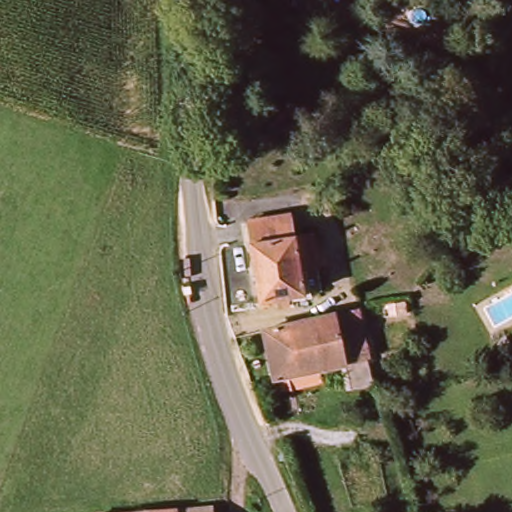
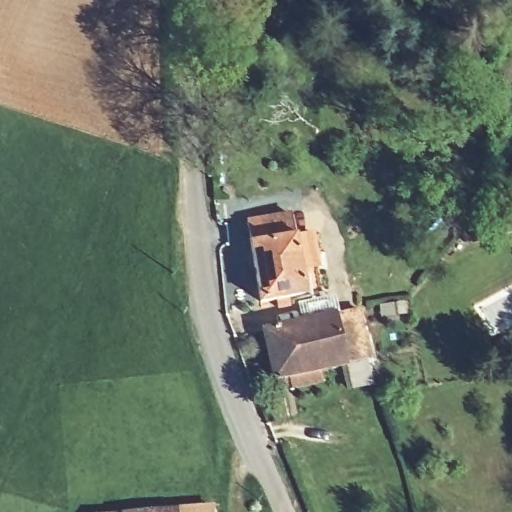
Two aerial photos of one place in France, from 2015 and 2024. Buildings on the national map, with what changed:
unchanged [(303,209),(315,264),(319,285),(303,289),(261,297),(244,220),(287,212),(303,209)]
unchanged [(255,325),(368,303),(379,358),(324,369),(267,381),(255,325)]
unchanged [(372,384),(345,389),(341,366),(367,361),(372,384)]
unchanged [(286,377),(317,371),(320,385),(289,391),(286,377)]
unchanged [(212,512),(185,512),(211,510),(212,512)]

